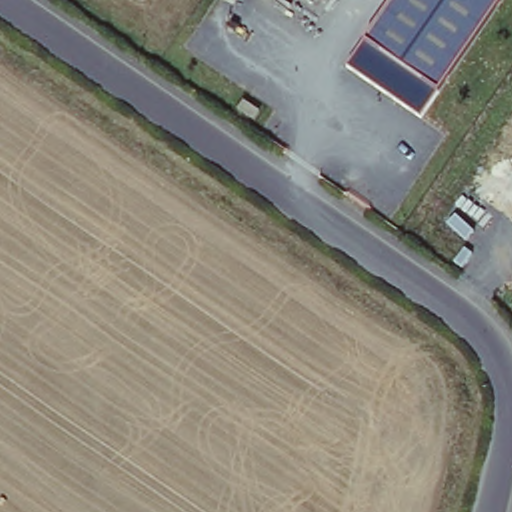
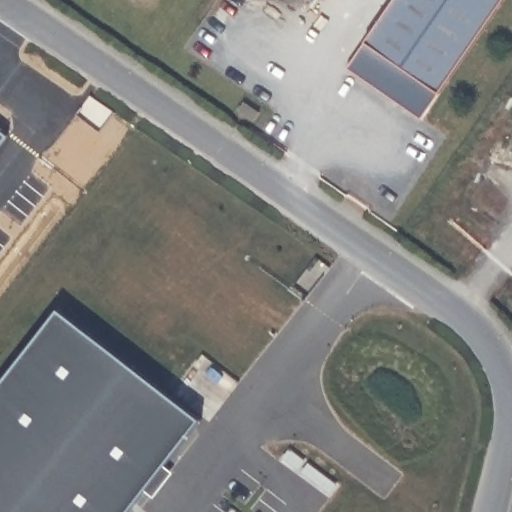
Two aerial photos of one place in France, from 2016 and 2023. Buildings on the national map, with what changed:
unchanged [(424,117),(346,68),(393,0),(502,0),(424,117)]
new [(13,129),(0,147),(0,120),(13,129)]
new [(206,409),(130,512),(0,512),(0,382),(62,302),(206,409)]

